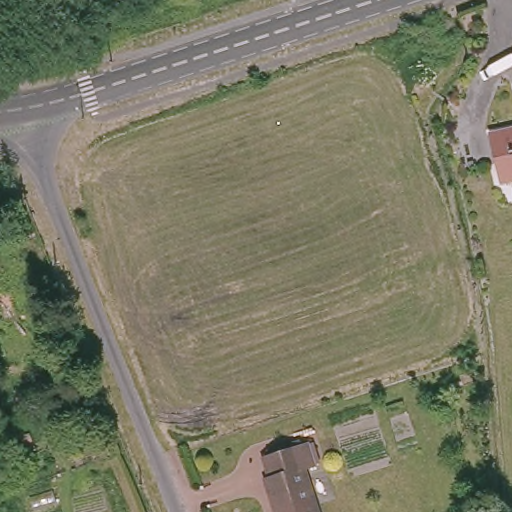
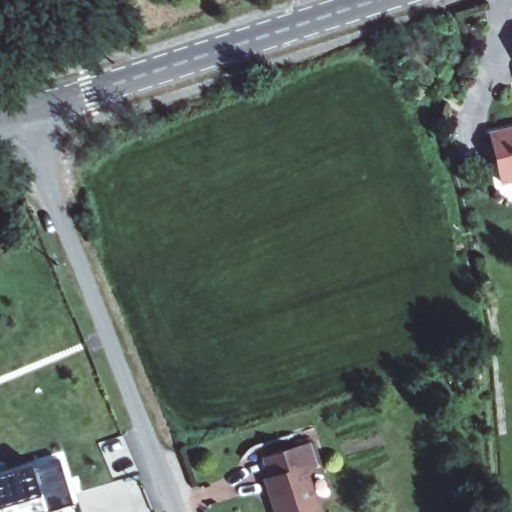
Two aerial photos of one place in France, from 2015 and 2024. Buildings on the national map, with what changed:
unchanged [(512,130),(512,182),(502,184),(492,135),(512,130)]
unchanged [(265,475),(271,472),(263,453),(307,438),(314,460),(304,463),(320,512),(278,512),(265,475)]
new [(15,488),(11,478),(62,460),(78,505),(59,512),(0,512),(0,493),(15,488)]

